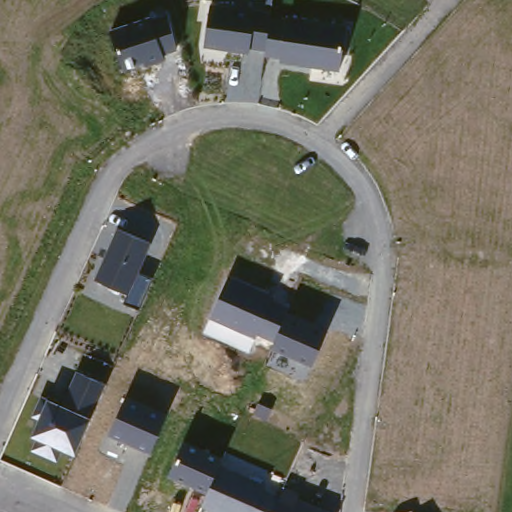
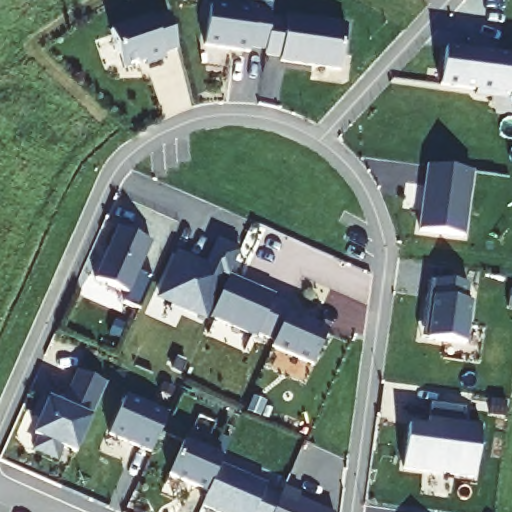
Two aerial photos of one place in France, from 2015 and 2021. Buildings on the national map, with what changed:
unchanged [(339,70),(280,63),(280,57),(265,55),(265,50),(248,49),(247,54),(205,48),(210,5),(250,9),(252,0),(273,0),(271,19),(343,26),(339,70)]
unchanged [(164,55),(165,59),(145,65),(143,62),(126,69),(111,30),(165,13),(176,49),(164,55)]
new [(512,54),(512,93),(496,91),(496,96),(477,93),(478,88),(442,84),(447,45),(512,54)]
unchanged [(137,309),(124,303),(127,295),(95,281),(117,230),(150,246),(138,273),(152,280),(137,309)]
new [(240,248),(229,275),(226,280),(222,278),(205,320),(154,300),(176,250),(205,261),(216,237),(240,248)]
unchanged [(312,365),(271,347),(274,340),(257,334),(255,339),(210,319),(229,275),(290,302),(286,310),(328,330),(312,365)]
new [(430,277),(469,282),(466,300),(472,300),(466,342),(429,337),(422,337),(423,326),(430,277)]
unchanged [(89,419),(75,457),(61,452),(56,463),(30,452),(35,439),(31,437),(39,421),(32,417),(40,397),(48,400),(61,404),(75,372),(105,386),(89,419)]
unchanged [(150,453),(110,437),(125,400),(166,418),(150,453)]
new [(410,422),(427,424),(431,401),(465,406),(462,424),(481,427),(474,475),(403,466),(410,422)]
unchanged [(207,494),(169,476),(184,439),(221,457),(217,466),(320,512),(212,512),(202,508),(207,494)]

